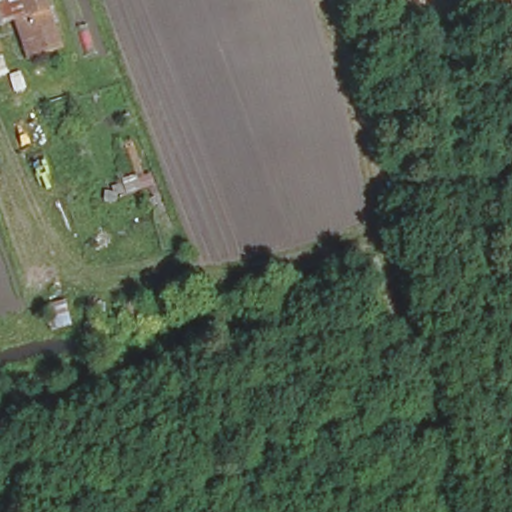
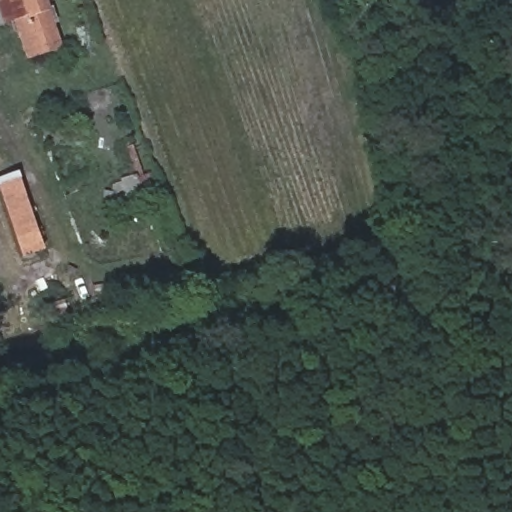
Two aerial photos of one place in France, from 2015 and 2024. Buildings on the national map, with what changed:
unchanged [(38,55),(21,11),(0,20),(0,0),(49,0),(66,44),(38,55)]
new [(0,177),(16,171),(43,250),(21,257),(0,194),(0,177)]

